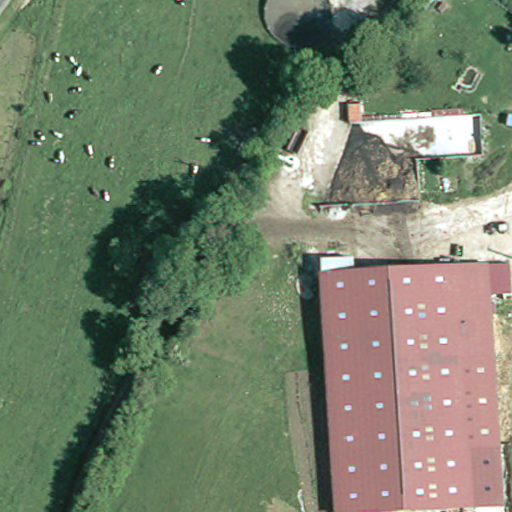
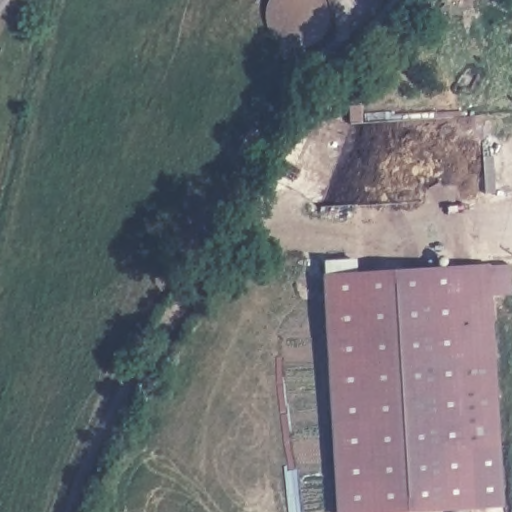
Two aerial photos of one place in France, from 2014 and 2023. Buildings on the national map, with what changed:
unchanged [(477,448),(483,507),(430,512),(345,512),(324,282),(488,264),(505,445),(477,448)]

